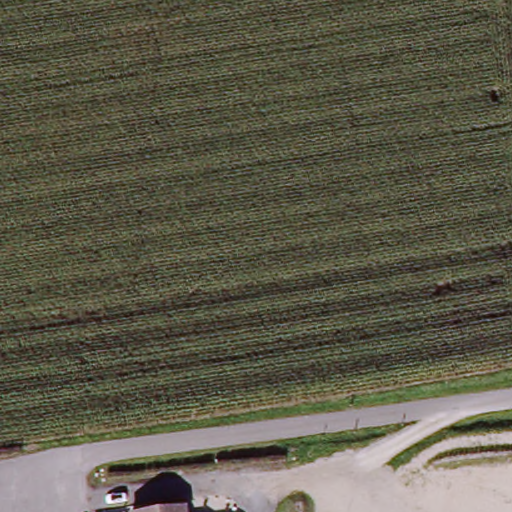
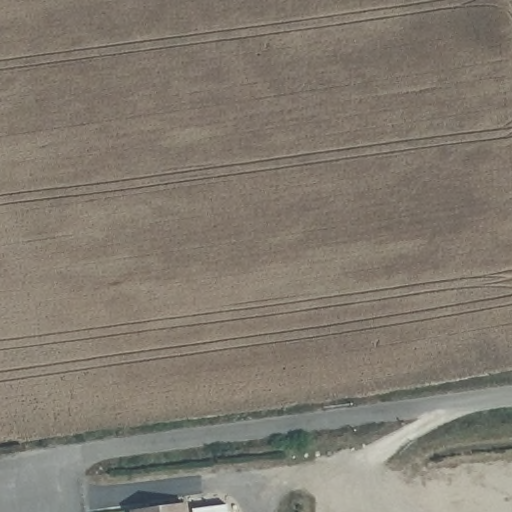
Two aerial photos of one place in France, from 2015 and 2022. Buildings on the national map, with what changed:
unchanged [(188,512),(150,512),(188,507),(188,512)]

